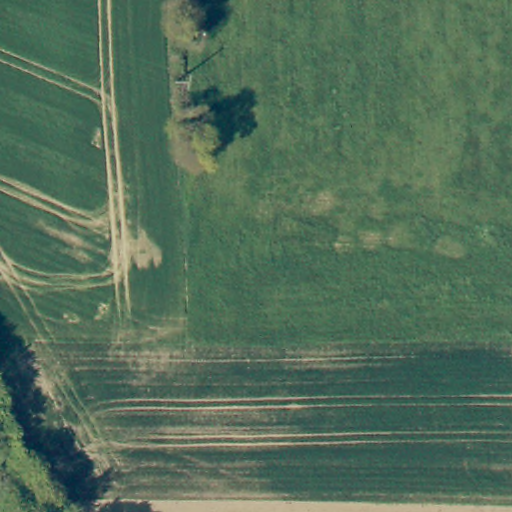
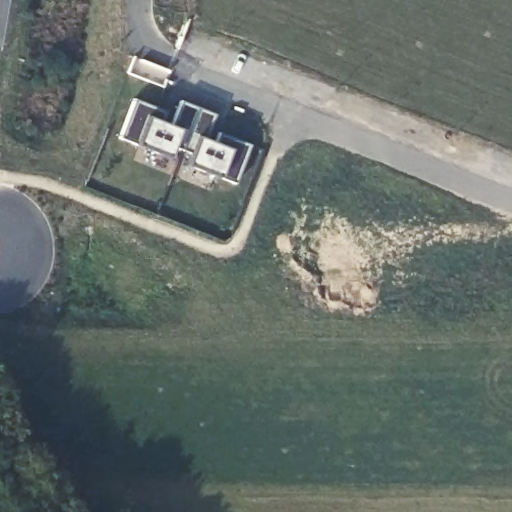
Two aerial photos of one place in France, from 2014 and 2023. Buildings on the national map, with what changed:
new [(235,182),(217,176),(186,164),(189,152),(171,146),(167,156),(136,143),(121,138),(134,100),(163,111),(158,121),(173,127),(182,102),(214,115),(202,139),(214,143),(218,134),(248,145),(235,182)]

